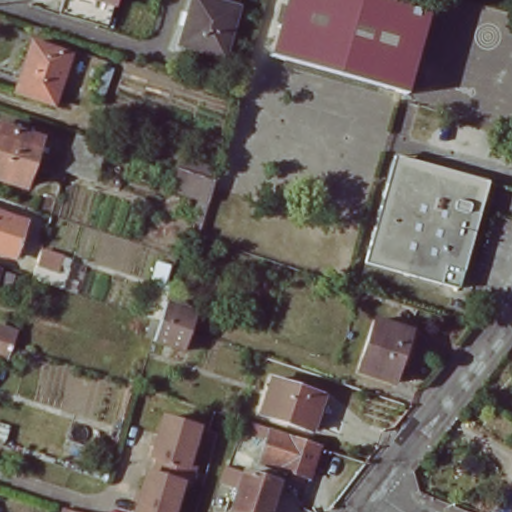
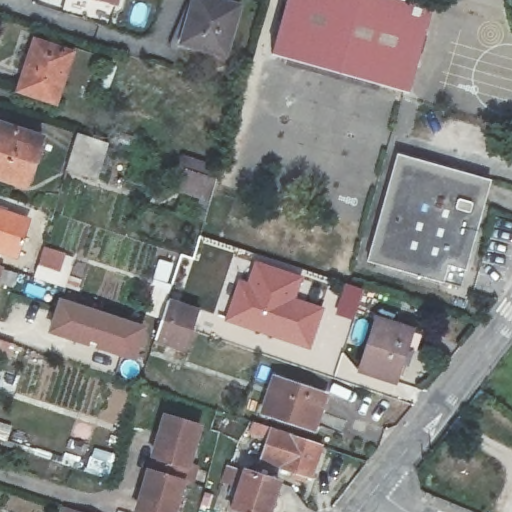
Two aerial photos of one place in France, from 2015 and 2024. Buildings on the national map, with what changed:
unchanged [(90,22),(53,10),(56,0),(101,0),(94,23),(90,22)]
unchanged [(180,41),(193,0),(238,0),(222,54),(180,41)]
unchanged [(427,0),(397,100),(271,62),(290,0),(427,0)]
unchanged [(55,102),(17,90),(33,38),(70,50),(55,102)]
unchanged [(0,128),(1,123),(42,136),(28,183),(0,174),(0,128)]
unchanged [(96,178),(66,167),(77,132),(108,142),(96,178)]
unchanged [(462,271),(446,267),(441,285),(368,262),(391,184),(400,157),(410,160),(489,183),(462,271)]
unchanged [(178,166),(217,179),(212,196),(173,182),(178,166)]
unchanged [(0,249),(0,210),(23,218),(11,252),(0,249)]
unchanged [(38,245),(73,257),(65,287),(28,275),(38,245)]
new [(237,277),(246,280),(254,258),(303,275),(296,297),(325,306),(311,350),(223,321),(237,277)]
unchanged [(13,282),(0,277),(0,267),(17,272),(13,282)]
new [(344,282),(364,287),(354,320),(334,313),(344,282)]
new [(60,300),(143,327),(133,357),(97,345),(99,340),(88,336),(87,342),(51,330),(60,300)]
unchanged [(155,339),(161,318),(167,300),(198,310),(192,329),(186,349),(155,339)]
unchanged [(358,368),(375,316),(412,328),(419,332),(412,356),(404,353),(395,381),(358,368)]
unchanged [(9,361),(0,358),(0,327),(18,333),(13,346),(9,361)]
unchanged [(314,428),(264,412),(275,377),(325,393),(314,428)]
unchanged [(201,425),(188,464),(196,466),(191,483),(183,480),(173,512),(143,512),(143,511),(136,509),(148,469),(156,471),(161,456),(153,454),(166,414),(201,425)]
unchanged [(251,435),(255,426),(274,433),(271,442),(251,435)]
unchanged [(310,480),(281,470),(290,444),(283,442),(285,436),(291,438),(291,441),(320,450),(310,480)]
unchanged [(4,451),(0,450),(0,438),(8,440),(4,451)]
unchanged [(277,479),(281,480),(271,512),(230,512),(244,469),(277,479)]
unchanged [(71,507),(85,512),(70,512),(71,507)]

